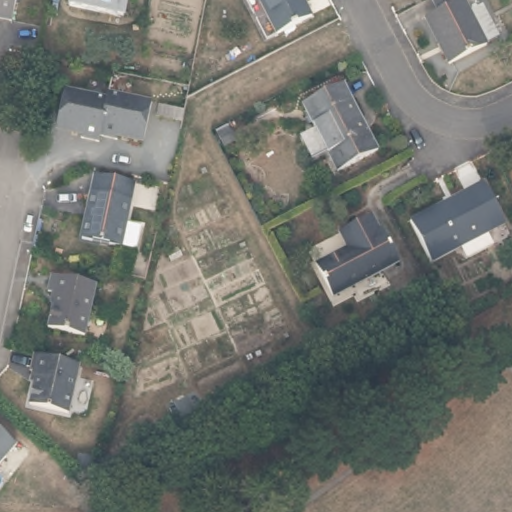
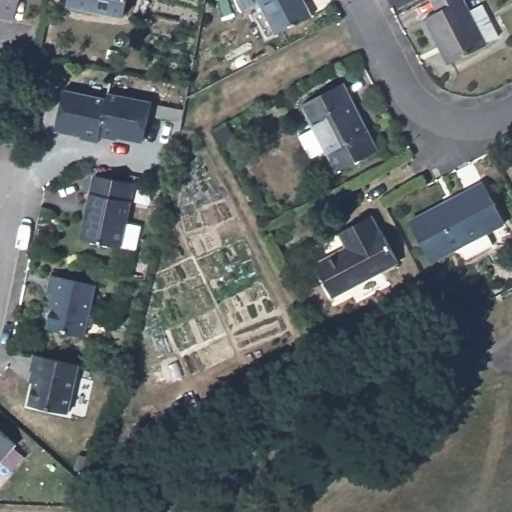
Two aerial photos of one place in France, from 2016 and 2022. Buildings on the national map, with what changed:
unchanged [(14,23),(0,20),(0,0),(19,0),(14,23)]
unchanged [(125,17),(69,6),(71,0),(128,0),(125,17)]
unchanged [(310,21),(276,38),(259,0),(301,0),(310,21)]
unchanged [(480,12),(497,43),(484,50),(485,52),(448,71),(423,25),(435,19),(426,2),(429,0),(457,0),(467,19),(480,12)]
unchanged [(343,88),(377,154),(337,176),(303,110),(343,88)]
unchanged [(61,92),(103,101),(104,96),(147,105),(145,117),(140,142),(114,137),(113,143),(96,139),(95,144),(77,141),(77,136),(52,132),(59,101),(61,92)]
unchanged [(151,118),(153,105),(181,111),(179,123),(151,118)]
unchanged [(127,227),(123,250),(108,247),(108,248),(69,240),(77,200),(81,176),(120,184),(116,207),(113,224),(127,227)]
unchanged [(465,196),(482,186),(503,225),(431,264),(409,224),(464,194),(465,196)]
unchanged [(377,234),(380,233),(398,264),(332,300),(314,268),(347,250),(339,236),(369,220),(377,234)]
unchanged [(84,287),(73,336),(37,328),(44,295),(37,293),(41,276),(84,287)]
unchanged [(18,407),(24,373),(19,373),(22,355),(68,366),(58,415),(18,407)]
unchanged [(0,450),(0,436),(6,443),(0,450)]

